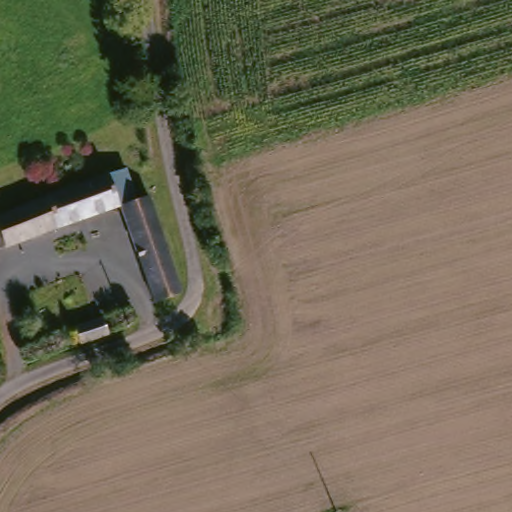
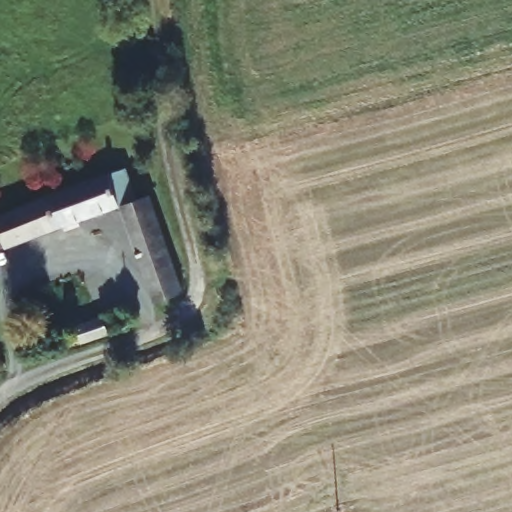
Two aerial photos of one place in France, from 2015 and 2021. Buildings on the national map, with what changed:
unchanged [(154,296),(123,206),(57,227),(11,244),(0,248),(0,208),(113,173),(128,168),(139,164),(146,186),(149,193),(181,288),(154,296)]
unchanged [(104,327),(106,333),(73,344),(69,326),(73,325),(101,316),(104,327)]

